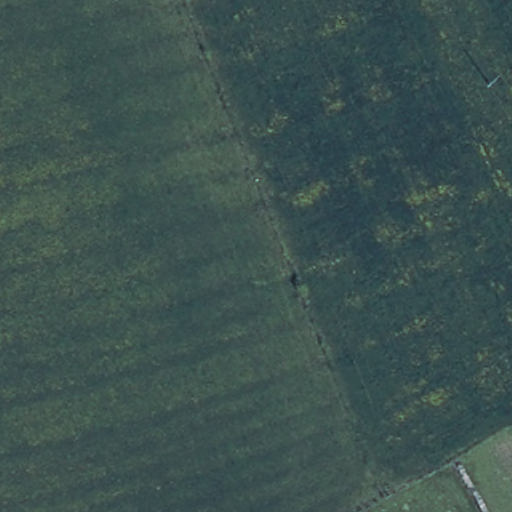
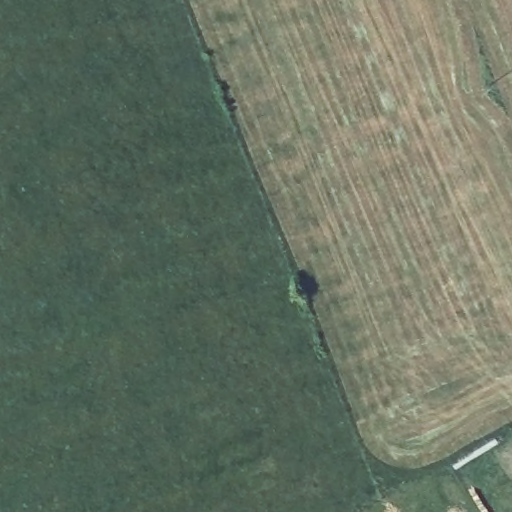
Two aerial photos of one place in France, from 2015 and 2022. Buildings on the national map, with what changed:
[]

